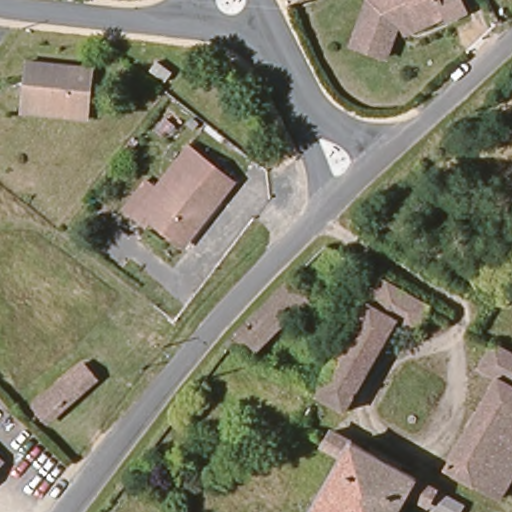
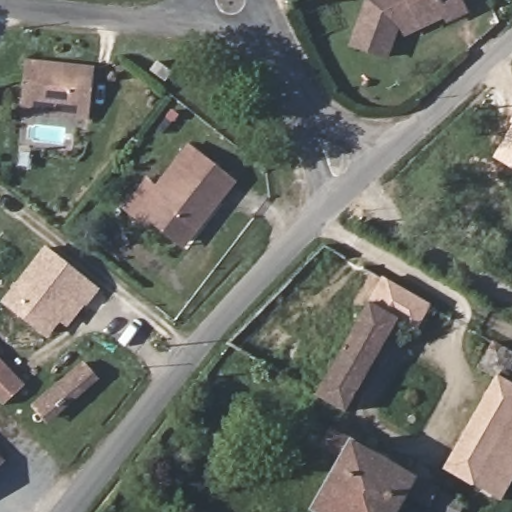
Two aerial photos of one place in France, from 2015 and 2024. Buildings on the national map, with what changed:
unchanged [(362,45),(378,3),(377,1),(379,0),(470,0),(475,10),(456,19),(454,15),(429,27),(399,41),(393,56),(362,45)]
unchanged [(22,92),(25,63),(91,71),(87,116),(37,110),(21,107),(22,92)]
new [(512,118),(512,123),(510,121),(512,118)]
new [(512,126),(512,168),(493,158),(512,126)]
unchanged [(158,224),(155,228),(142,218),(132,211),(152,185),(162,192),(184,164),(196,147),(243,183),(210,225),(191,250),(185,245),(158,224)]
new [(67,328),(60,323),(47,337),(1,302),(46,246),(99,289),(67,328)]
unchanged [(231,344),(295,279),(308,285),(317,291),(293,332),(280,324),(255,356),(231,344)]
unchanged [(402,324),(351,413),(323,397),(389,282),(435,307),(420,333),(402,324)]
unchanged [(163,333),(169,324),(177,328),(171,338),(163,333)]
unchanged [(480,486),(452,470),(503,380),(485,369),(500,343),(512,350),(512,486),(505,498),(481,484),(480,486)]
new [(24,387),(4,406),(0,402),(0,361),(24,387)]
unchanged [(38,407),(92,364),(102,377),(49,420),(38,407)]
unchanged [(437,501),(418,491),(406,512),(333,512),(325,507),(353,455),(335,444),(343,429),(353,435),(446,488),(472,503),(467,512),(457,512),(437,501)]
unchanged [(0,470),(0,457),(6,463),(0,470)]

